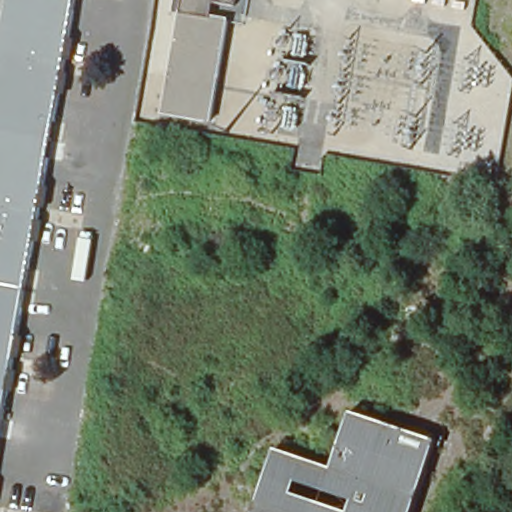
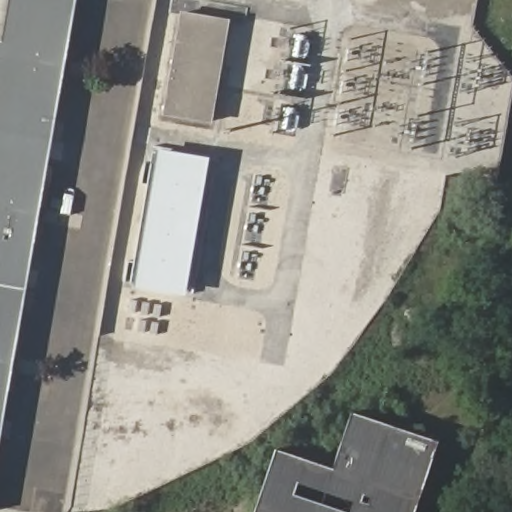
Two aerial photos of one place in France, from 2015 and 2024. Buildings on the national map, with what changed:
unchanged [(0,402),(0,0),(71,0),(0,402)]
demolished [(239,7),(200,0),(240,0),(239,7)]
unchanged [(185,14),(232,21),(213,121),(168,115),(185,14)]
new [(185,296),(134,287),(157,149),(210,157),(185,296)]
unchanged [(319,465),(331,469),(340,441),(350,412),(363,416),(436,441),(413,512),(254,512),(275,450),(319,465)]

